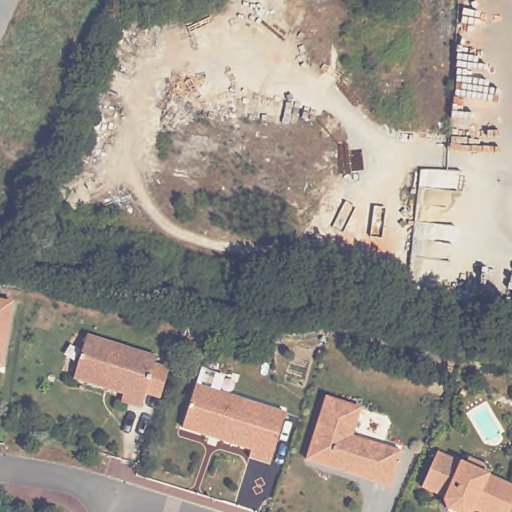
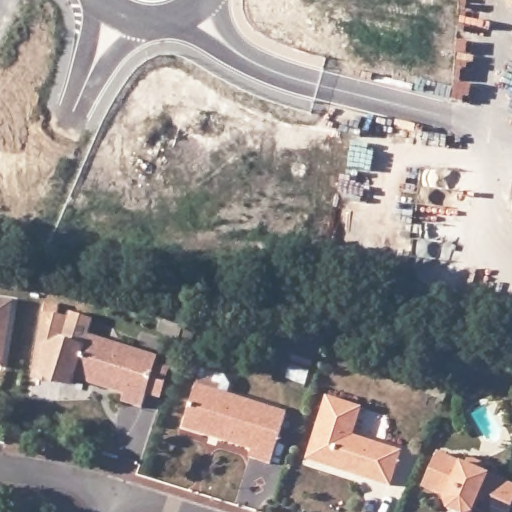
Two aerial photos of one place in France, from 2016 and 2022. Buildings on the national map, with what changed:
unchanged [(12,302),(1,366),(0,366),(0,300),(12,302)]
new [(42,313),(44,302),(59,305),(57,315),(66,317),(67,311),(93,320),(87,336),(74,378),(71,388),(52,387),(41,377),(31,378),(42,313)]
unchanged [(167,375),(160,398),(145,393),(141,408),(121,402),(123,394),(74,378),(87,336),(157,358),(155,365),(169,370),(167,375)]
unchanged [(196,385),(286,413),(270,464),(249,457),(251,448),(182,427),(196,385)]
unchanged [(355,475),(306,460),(326,396),(360,408),(351,436),(400,451),(390,486),(366,477),(365,478),(355,475)]
unchanged [(470,512),(455,512),(447,508),(443,500),(445,496),(422,485),(436,452),(465,465),(468,457),(487,465),(483,472),(512,485),(512,503),(508,512),(482,512),(473,508),(471,511),(470,512)]

